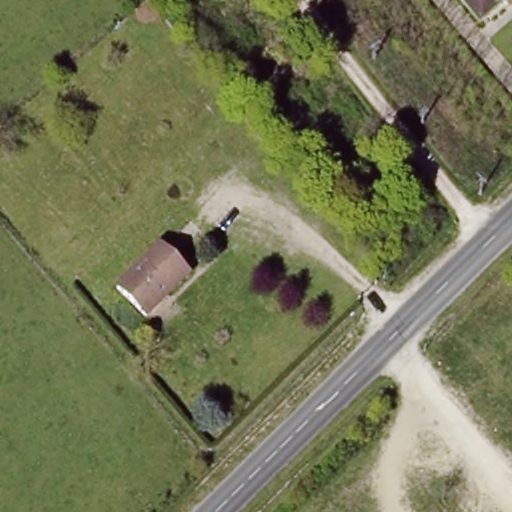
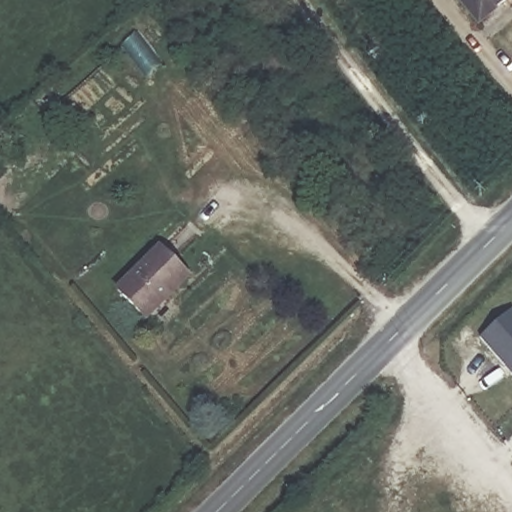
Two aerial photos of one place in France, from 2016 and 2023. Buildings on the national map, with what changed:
unchanged [(461,0),(501,0),(478,20),(461,0)]
unchanged [(512,0),(512,1),(511,0),(512,0)]
unchanged [(161,252),(187,280),(145,322),(118,294),(161,252)]
new [(512,309),(512,375),(480,338),(512,309)]

